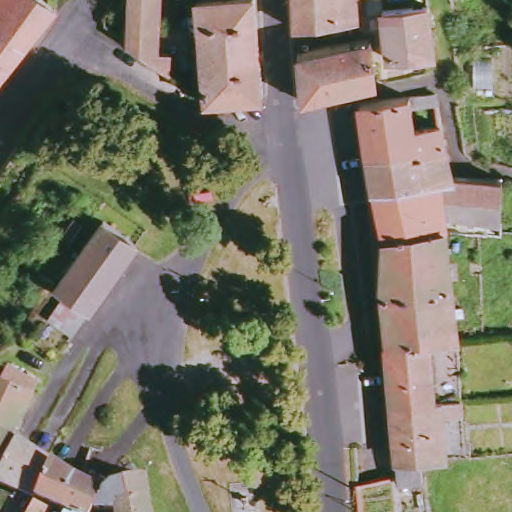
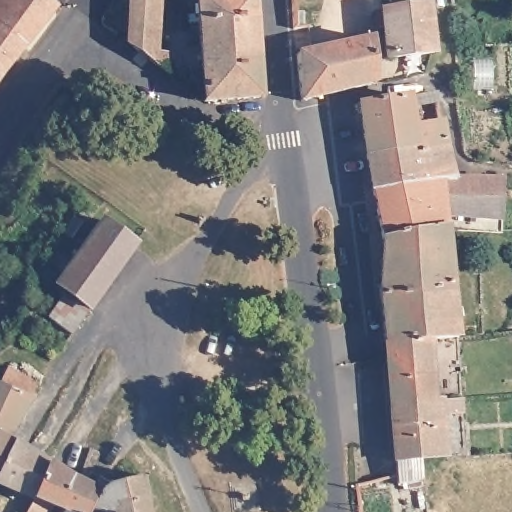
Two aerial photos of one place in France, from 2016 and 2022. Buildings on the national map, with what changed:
unchanged [(60,7),(30,47),(0,27),(0,0),(52,0),(60,7)]
unchanged [(137,0),(165,0),(161,50),(172,51),(173,72),(134,43),(137,0)]
unchanged [(266,96),(208,100),(188,85),(206,75),(203,0),(260,0),(266,96)]
unchanged [(358,27),(299,28),(298,0),(358,0),(358,27)]
unchanged [(437,54),(428,56),(392,64),(388,39),(385,20),(386,16),(432,7),(437,54)]
unchanged [(30,47),(0,86),(0,27),(30,47)]
unchanged [(374,41),(377,66),(380,85),(306,100),(302,54),(362,43),(374,41)]
unchanged [(356,104),(435,94),(437,107),(411,111),(413,128),(441,125),(447,147),(455,175),(456,179),(373,191),(366,157),(356,104)]
unchanged [(373,191),(456,179),(455,175),(502,180),(503,233),(448,234),(448,231),(381,237),(373,191)]
unchanged [(93,307),(60,285),(106,220),(138,242),(93,307)]
unchanged [(380,280),(381,237),(448,231),(448,234),(457,337),(428,340),(385,343),(380,280)]
unchanged [(76,332),(45,309),(59,287),(91,309),(76,332)]
unchanged [(385,343),(428,340),(437,401),(392,404),(385,343)]
unchanged [(0,405),(0,383),(2,384),(10,370),(42,387),(26,418),(0,405)]
unchanged [(421,456),(423,476),(398,481),(397,472),(392,404),(437,401),(443,401),(458,400),(458,413),(444,415),(446,441),(447,455),(425,456),(421,456)]
unchanged [(0,483),(0,405),(26,418),(13,443),(20,448),(1,483),(0,483)]
unchanged [(20,448),(55,470),(41,503),(1,483),(20,448)]
unchanged [(55,470),(81,485),(69,512),(37,512),(41,503),(55,470)]
unchanged [(112,490),(146,481),(151,512),(101,512),(107,500),(112,490)]
unchanged [(107,500),(101,512),(69,512),(81,485),(107,500)]

